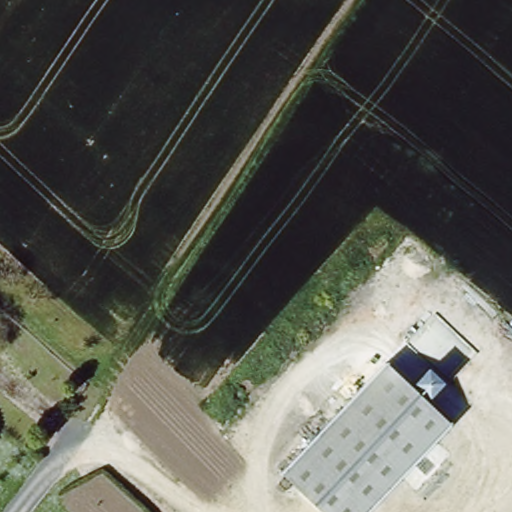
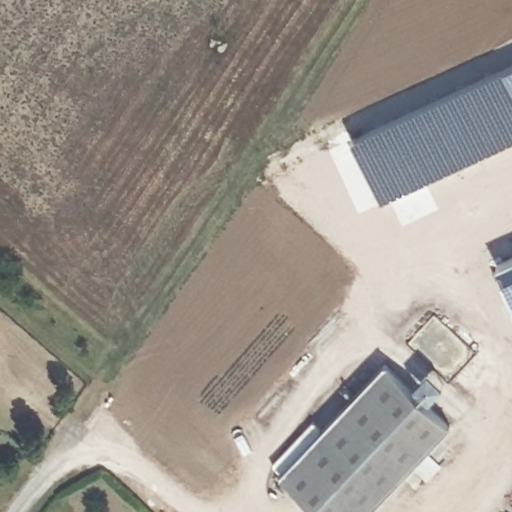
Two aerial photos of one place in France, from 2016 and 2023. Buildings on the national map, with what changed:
new [(512,141),(381,202),(343,119),(512,41),(512,141)]
new [(512,301),(495,264),(512,257),(512,301)]
unchanged [(386,365),(449,427),(369,512),(319,512),(280,476),(386,365)]

